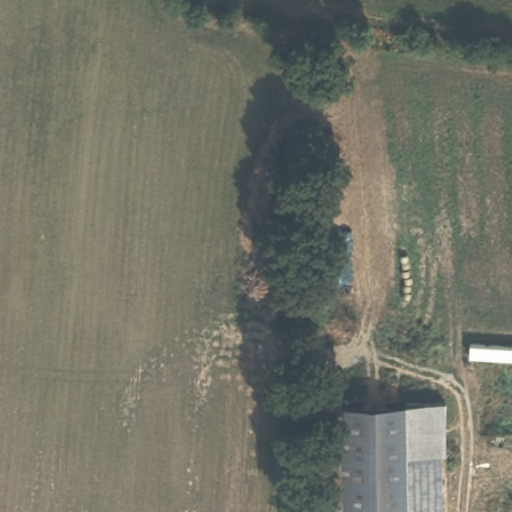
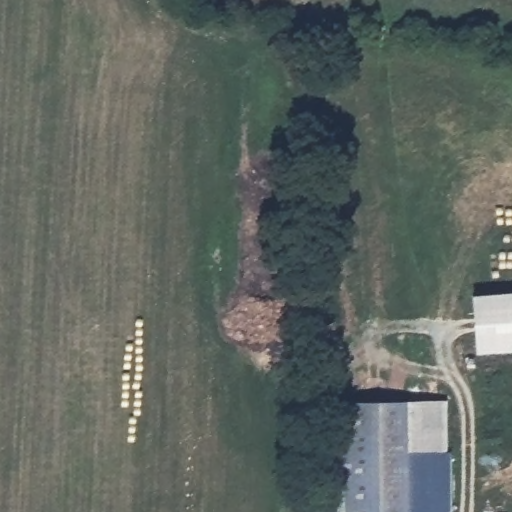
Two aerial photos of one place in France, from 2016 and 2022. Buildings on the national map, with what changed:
new [(476,354),(471,295),(512,293),(512,352),(476,354)]
unchanged [(436,455),(448,455),(448,480),(440,480),(442,512),(341,512),(339,407),(406,405),(405,457),(436,455)]
unchanged [(436,407),(436,455),(405,457),(406,405),(436,407)]
unchanged [(308,512),(307,406),(339,407),(341,512),(308,512)]

